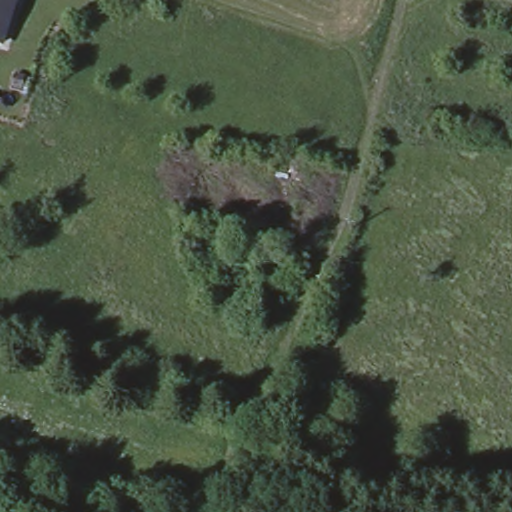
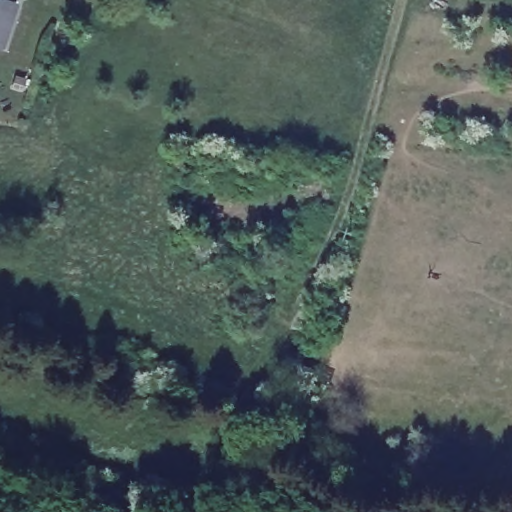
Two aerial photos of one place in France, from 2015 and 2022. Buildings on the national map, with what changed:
unchanged [(0,0),(5,0),(6,1),(0,19),(0,0)]

